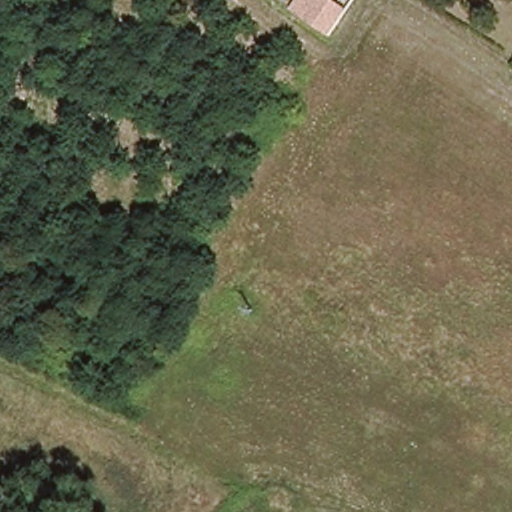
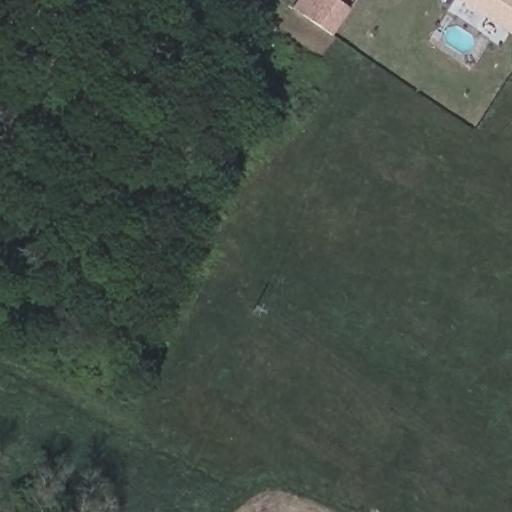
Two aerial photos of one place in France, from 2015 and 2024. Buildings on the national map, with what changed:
unchanged [(333,37),(299,14),(309,0),(344,0),(354,7),(333,37)]
new [(512,34),(511,36),(458,0),(512,0),(512,34)]

